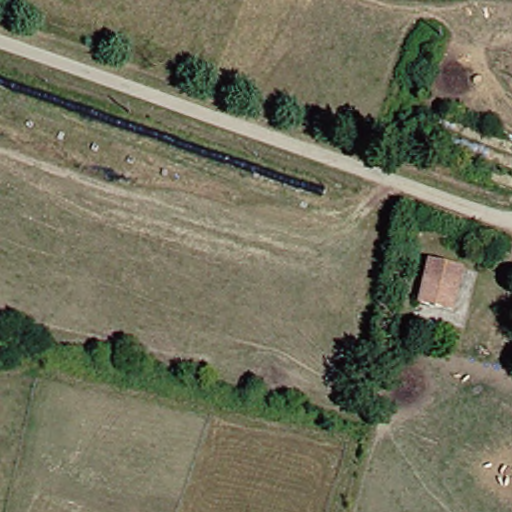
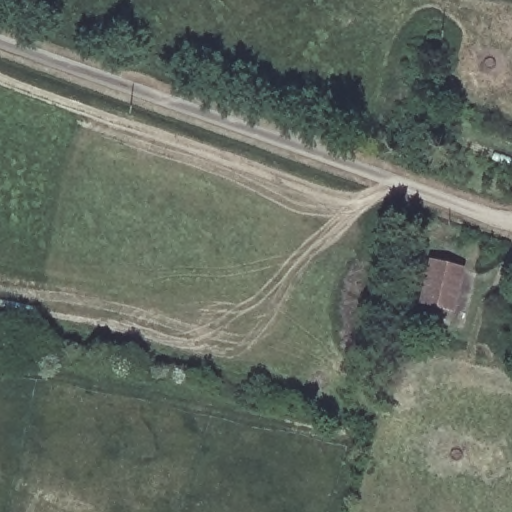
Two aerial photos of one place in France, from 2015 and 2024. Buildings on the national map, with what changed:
unchanged [(468,270),(458,310),(427,300),(437,260),(468,270)]

